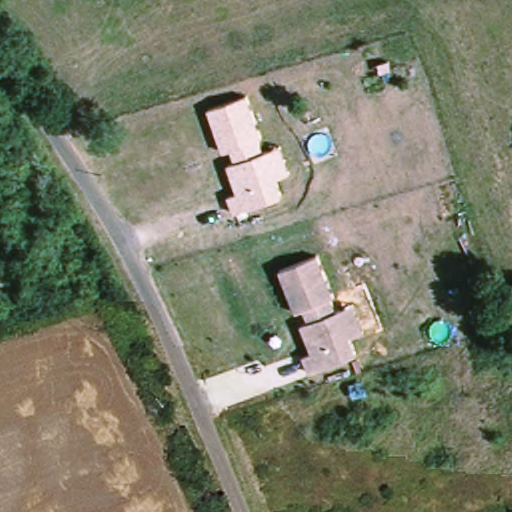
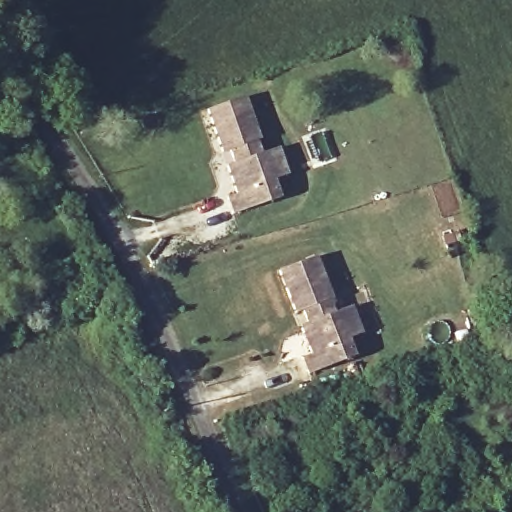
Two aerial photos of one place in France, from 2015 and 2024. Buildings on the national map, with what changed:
unchanged [(275,203),(230,216),(225,200),(234,198),(225,168),(231,167),(229,153),(219,156),(205,112),(243,100),(257,143),(254,144),(257,157),(261,156),(275,153),(283,179),(269,183),(275,203)]
unchanged [(366,333),(352,339),(357,357),(313,372),(308,356),(317,353),(306,325),(314,322),(309,309),(300,311),(286,270),(322,255),(337,298),(335,299),(338,313),(342,311),(357,306),(366,333)]

